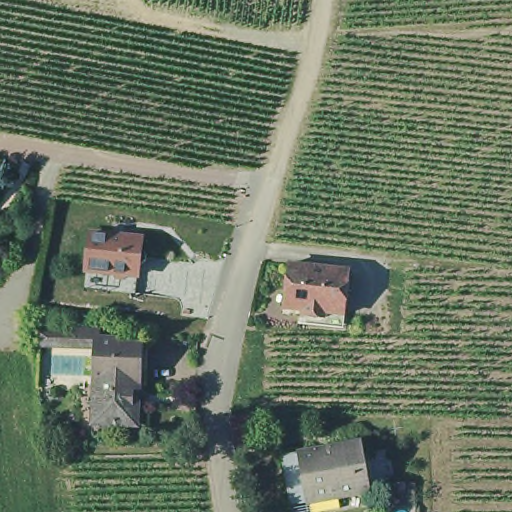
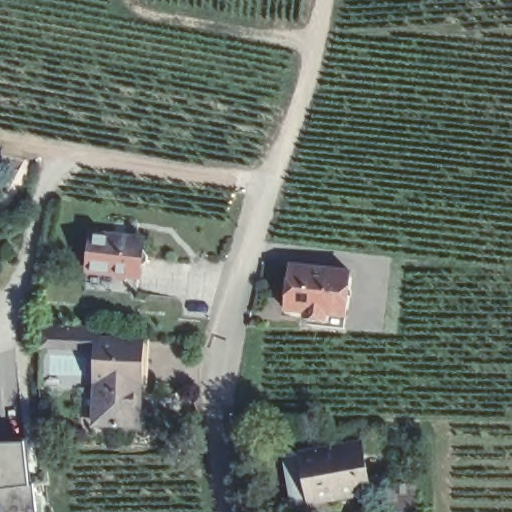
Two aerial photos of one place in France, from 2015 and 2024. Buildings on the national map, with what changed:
unchanged [(89,230),(104,231),(105,229),(127,231),(127,233),(142,234),(138,271),(129,270),(122,275),(116,275),(109,267),(95,266),(85,265),(86,255),(89,230)]
unchanged [(310,307),(310,301),(290,298),(294,255),(355,262),(350,305),(347,319),(312,315),(312,307),(310,307)]
unchanged [(96,388),(97,357),(98,346),(98,345),(42,342),(43,316),(59,317),(59,322),(102,324),(101,336),(142,338),(150,338),(150,346),(149,360),(148,382),(140,382),(137,423),(95,422),(96,388)]
unchanged [(231,421),(256,416),(255,443),(235,447),(231,421)]
new [(24,487),(29,486),(32,512),(0,512),(0,443),(19,441),(24,487)]
unchanged [(285,455),(291,454),(303,452),(366,442),(374,492),(312,502),(294,505),(285,455)]
unchanged [(393,498),(381,498),(381,488),(394,488),(394,483),(404,483),(404,492),(394,492),(393,498)]

